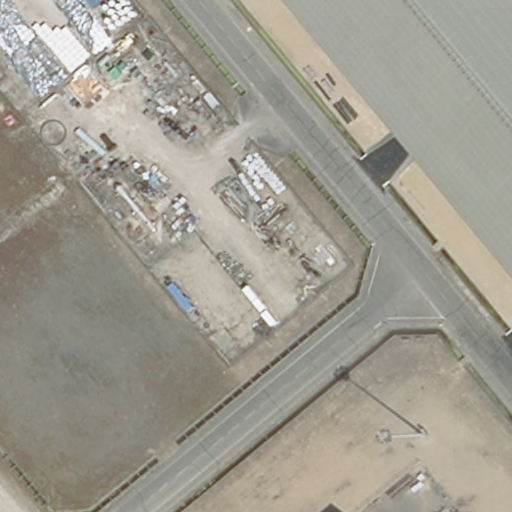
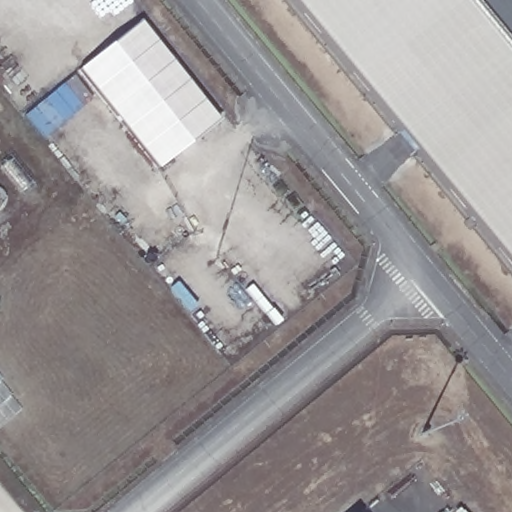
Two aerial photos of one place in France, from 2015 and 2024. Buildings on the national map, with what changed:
unchanged [(512,103),(423,162),(288,0),(512,0),(512,103)]
new [(140,21),(218,120),(187,144),(157,168),(79,69),(109,45),(140,21)]
unchanged [(512,270),(423,162),(512,103),(512,270)]

